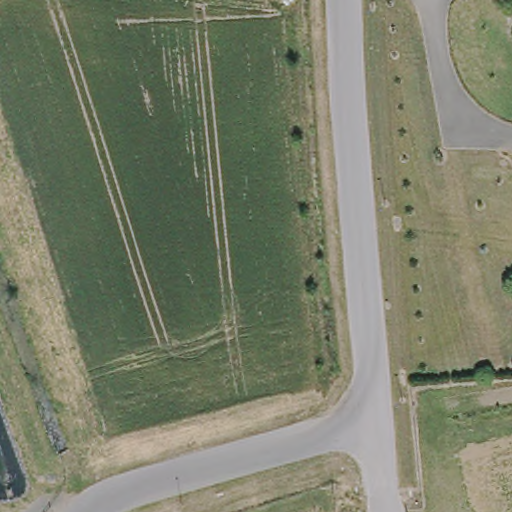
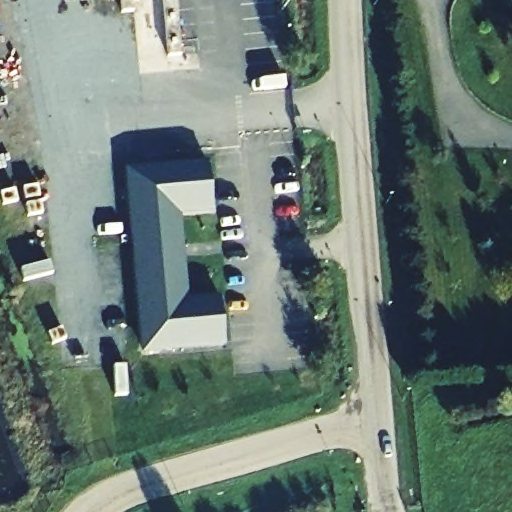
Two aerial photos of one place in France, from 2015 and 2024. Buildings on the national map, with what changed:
new [(204,169),(209,215),(175,219),(183,307),(217,304),(222,350),(141,358),(123,177),(204,169)]

